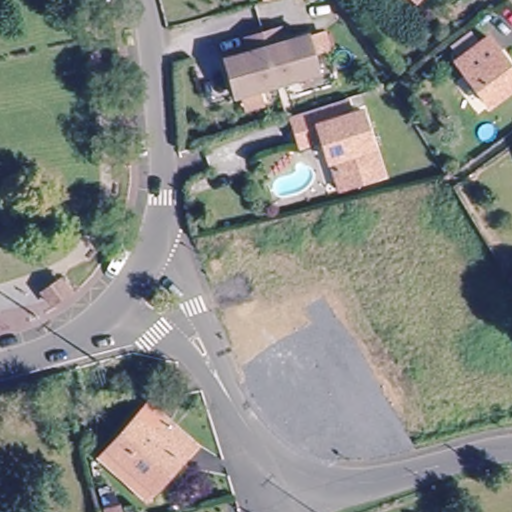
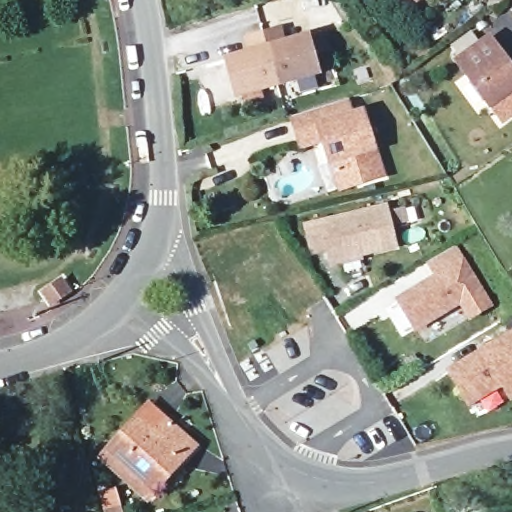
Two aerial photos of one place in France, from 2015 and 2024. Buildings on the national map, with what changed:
unchanged [(512,81),(486,101),(462,69),(463,68),(454,55),(455,55),(446,43),(466,28),(476,39),(484,33),(512,71),(512,81)]
unchanged [(284,44),(308,37),(309,38),(323,34),(327,49),(313,53),(319,74),(278,85),(275,77),(264,34),(280,29),(284,44)]
unchanged [(245,110),(241,95),(236,96),(226,59),(250,53),(246,39),(264,34),(275,77),(278,85),(265,89),(269,104),(245,110)]
unchanged [(336,170),(326,136),(302,144),(297,129),(292,112),(347,95),(352,111),(363,108),(382,171),(362,178),(341,184),(336,170)]
new [(397,247),(330,269),(326,253),(311,257),(303,223),(388,203),(397,247)]
new [(494,303),(469,319),(460,304),(414,331),(393,299),(433,273),(426,263),(456,244),(494,303)]
unchanged [(51,305),(46,298),(42,292),(57,283),(62,280),(65,285),(70,293),(51,305)]
new [(501,386),(468,406),(446,371),(512,328),(512,399),(510,401),(501,386)]
unchanged [(97,459),(105,451),(132,419),(145,406),(164,423),(190,446),(149,491),(142,499),(97,459)]
unchanged [(120,502),(122,512),(106,512),(105,506),(120,502)]

